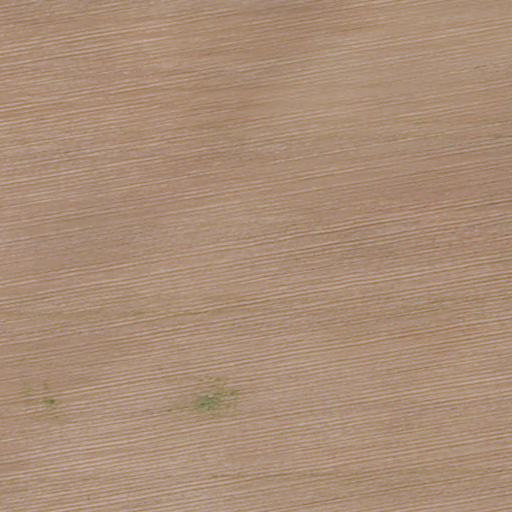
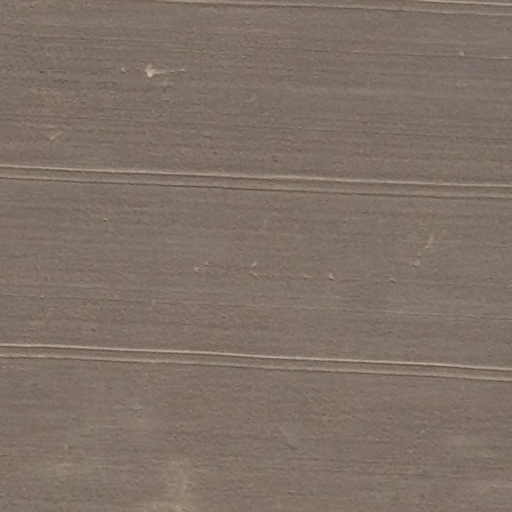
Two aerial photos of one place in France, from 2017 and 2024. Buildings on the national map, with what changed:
[]

